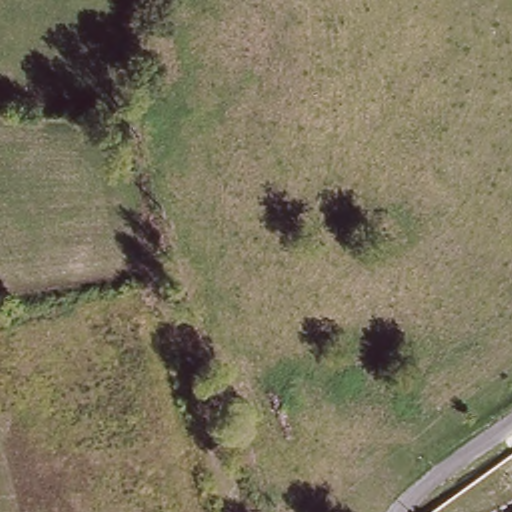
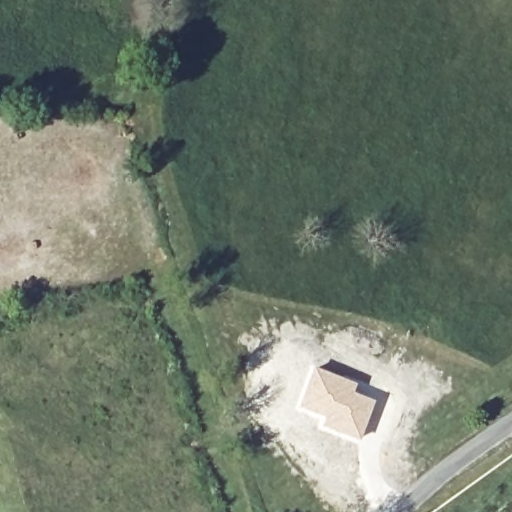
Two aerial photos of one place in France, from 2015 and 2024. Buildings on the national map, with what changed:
new [(312,365),(357,382),(354,391),(375,398),(359,440),(319,425),(322,418),(295,407),(312,365)]

